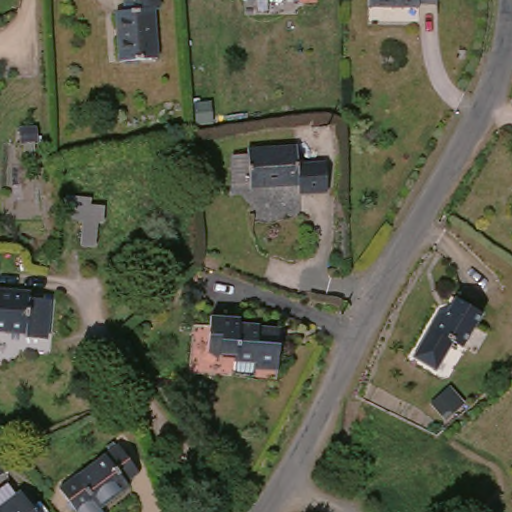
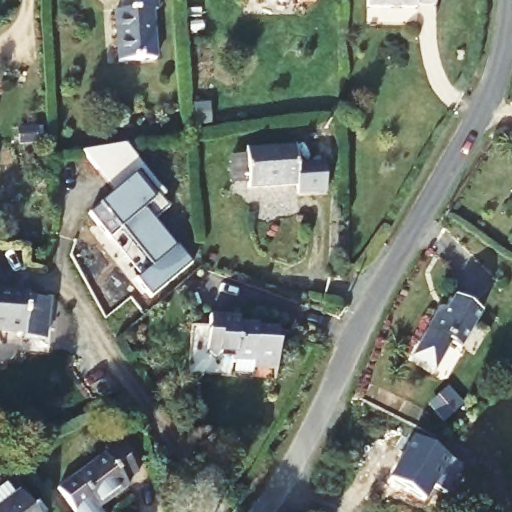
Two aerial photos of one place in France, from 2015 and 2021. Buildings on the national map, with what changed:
unchanged [(114,21),(122,20),(118,0),(154,0),(157,15),(150,16),(157,66),(122,72),(114,21)]
unchanged [(315,5),(298,6),(297,1),(243,6),(242,0),(315,0),(315,5)]
unchanged [(433,5),(416,5),(416,15),(362,12),(363,0),(434,0),(433,5)]
new [(123,143),(165,194),(161,197),(169,207),(153,220),(174,245),(191,263),(153,295),(139,277),(153,265),(123,225),(119,228),(111,239),(91,213),(115,192),(83,151),(123,143)]
unchanged [(330,199),(302,202),(300,194),(250,194),(249,188),(230,188),(230,156),(247,155),(247,150),(298,151),(301,170),(325,166),(330,199)]
demolished [(52,196),(97,206),(94,221),(87,220),(81,244),(66,240),(71,219),(55,215),(52,196)]
unchanged [(0,278),(2,278),(0,292),(0,278)]
unchanged [(35,304),(55,306),(50,346),(28,343),(29,340),(0,336),(0,297),(35,300),(35,304)]
unchanged [(413,351),(424,331),(435,315),(441,319),(454,300),(484,321),(462,357),(448,348),(438,367),(413,351)]
unchanged [(240,326),(240,330),(278,337),(272,372),(257,370),(255,384),(231,378),(234,363),(222,361),(216,366),(212,366),(205,356),(210,321),(240,326)]
new [(418,433),(465,463),(447,490),(435,481),(425,495),(392,474),(418,433)]
unchanged [(121,447),(139,478),(122,488),(127,498),(102,512),(68,512),(54,485),(121,447)]
unchanged [(36,505),(40,512),(0,512),(22,500),(27,509),(36,505)]

